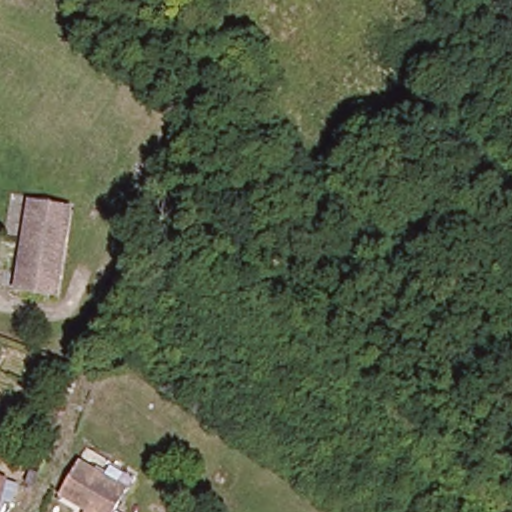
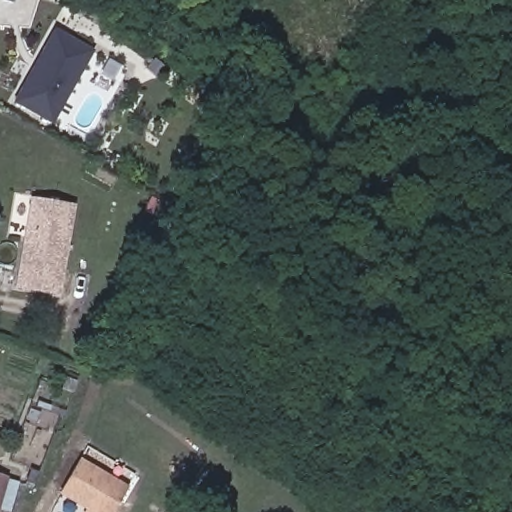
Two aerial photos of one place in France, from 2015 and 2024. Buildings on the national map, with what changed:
new [(51,127),(13,105),(53,30),(92,51),(51,127)]
unchanged [(65,206),(50,294),(11,287),(27,199),(65,206)]
unchanged [(88,506),(60,489),(77,459),(124,488),(111,512),(84,512),(88,506)]
unchanged [(0,479),(0,477),(1,478),(0,479)]

